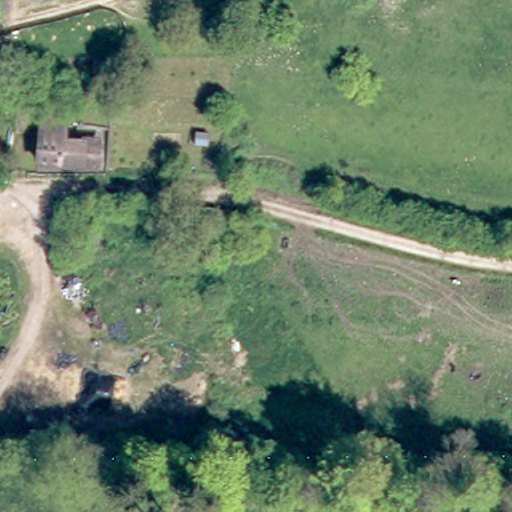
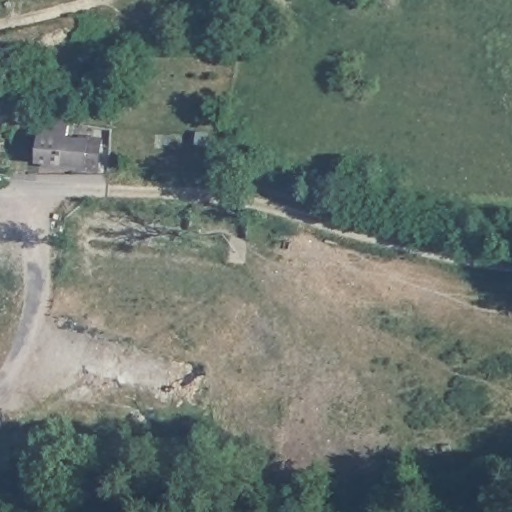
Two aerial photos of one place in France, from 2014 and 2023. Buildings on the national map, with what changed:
unchanged [(0,97),(0,93),(1,93),(0,97)]
unchanged [(42,123),(68,125),(66,145),(98,147),(96,172),(38,167),(42,123)]
unchanged [(201,227),(190,225),(193,205),(204,207),(205,207),(201,227)]

